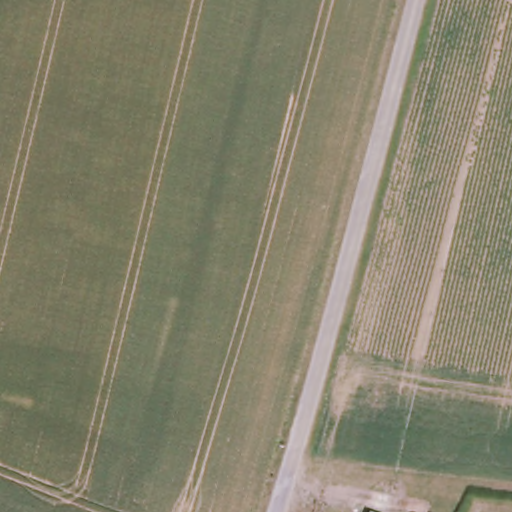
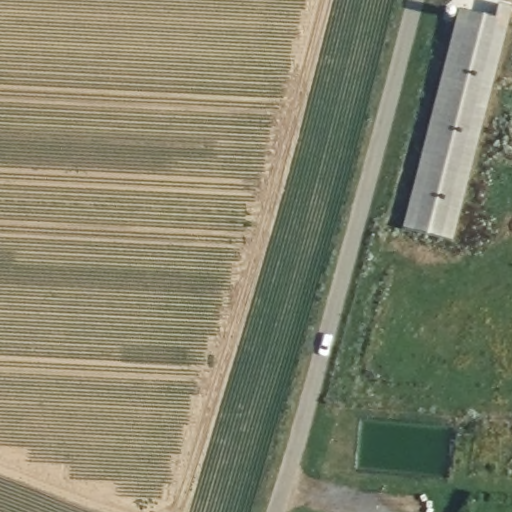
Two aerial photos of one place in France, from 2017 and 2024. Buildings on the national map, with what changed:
new [(462,11),(495,20),(499,4),(511,7),(451,240),(406,229),(462,11)]

